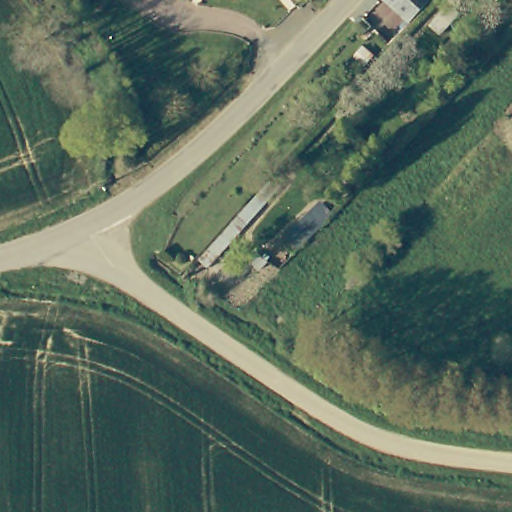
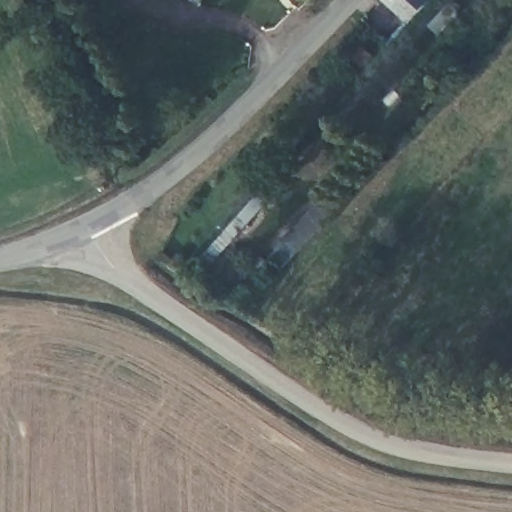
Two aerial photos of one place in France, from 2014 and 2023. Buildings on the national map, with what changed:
unchanged [(423,0),(427,5),(404,29),(374,0),(423,0)]
unchanged [(328,217),(290,253),(278,240),(315,204),(328,217)]

